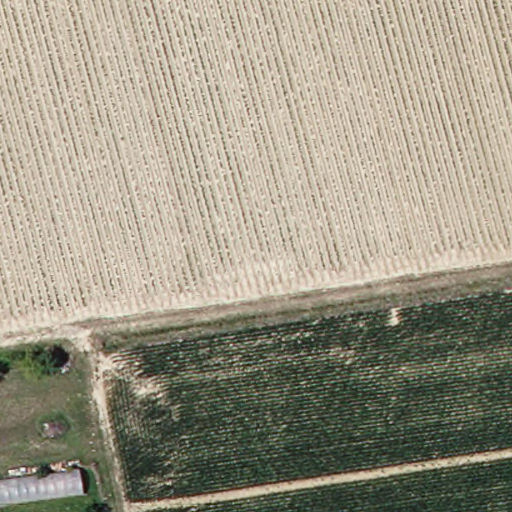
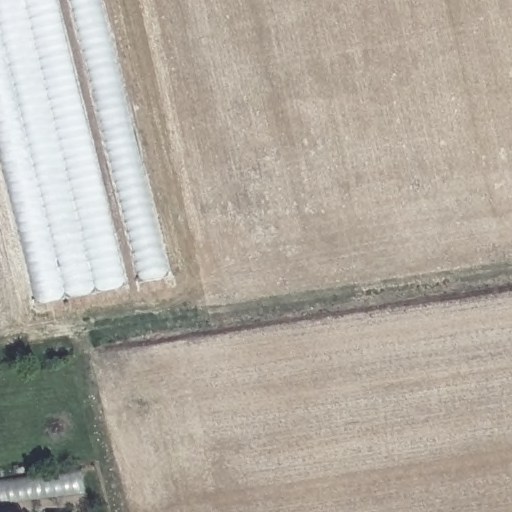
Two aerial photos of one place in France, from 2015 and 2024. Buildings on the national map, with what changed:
new [(36,305),(0,157),(0,0),(56,0),(125,285),(36,305)]
new [(141,283),(71,0),(102,0),(170,276),(141,283)]
unchanged [(2,502),(1,480),(86,468),(90,493),(2,502)]

